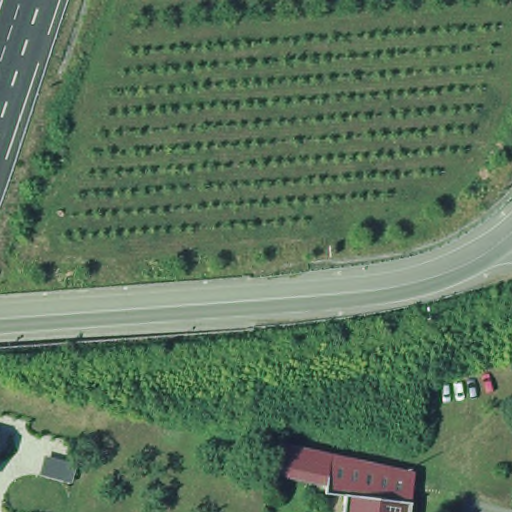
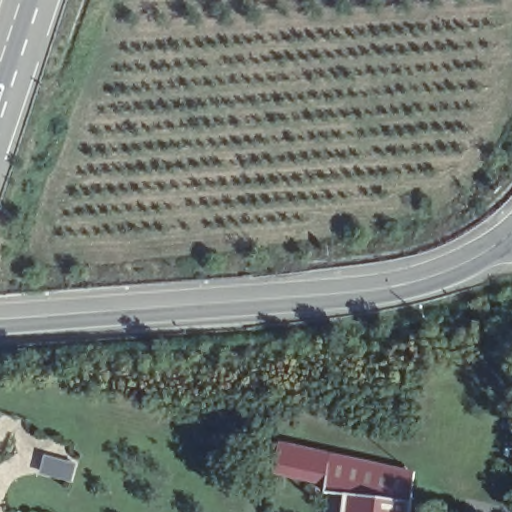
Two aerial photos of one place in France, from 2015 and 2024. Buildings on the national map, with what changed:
unchanged [(59,442),(72,446),(70,457),(56,455),(54,462),(0,450),(0,428),(59,442)]
unchanged [(322,457),(316,490),(264,477),(272,444),(322,457)]
unchanged [(94,445),(101,446),(98,458),(91,456),(94,445)]
unchanged [(342,500),(320,495),(316,490),(322,457),(410,477),(406,512),(340,512),(342,500)]

